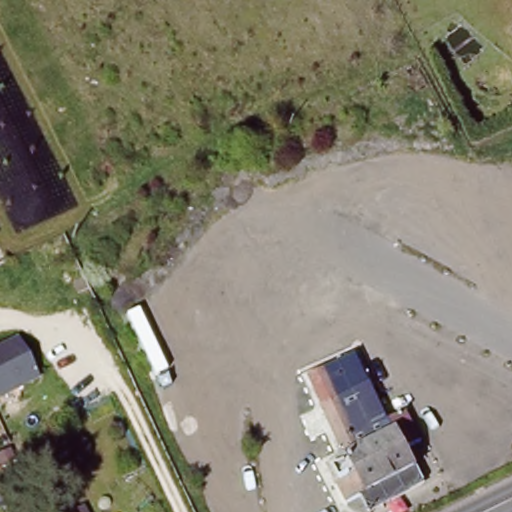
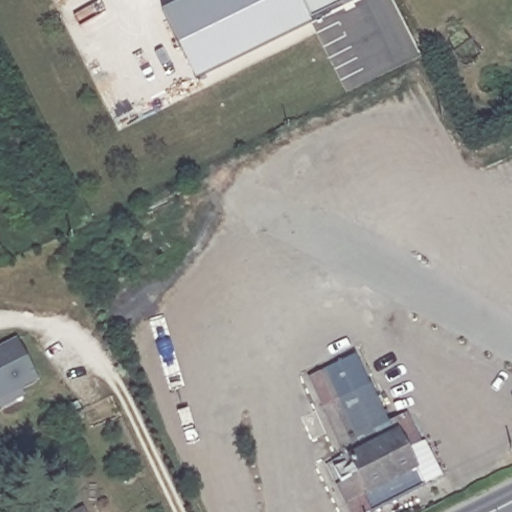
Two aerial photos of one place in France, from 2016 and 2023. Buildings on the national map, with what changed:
new [(196,80),(164,12),(188,0),(355,0),(311,21),(196,80)]
unchanged [(38,377),(8,392),(0,375),(0,348),(18,338),(38,377)]
unchanged [(347,461),(310,371),(362,350),(390,418),(408,411),(422,440),(408,447),(424,482),(369,507),(367,508),(362,495),(346,502),(337,482),(342,480),(336,466),(346,461),(347,461)]
unchanged [(8,392),(0,397),(0,375),(8,392)]

